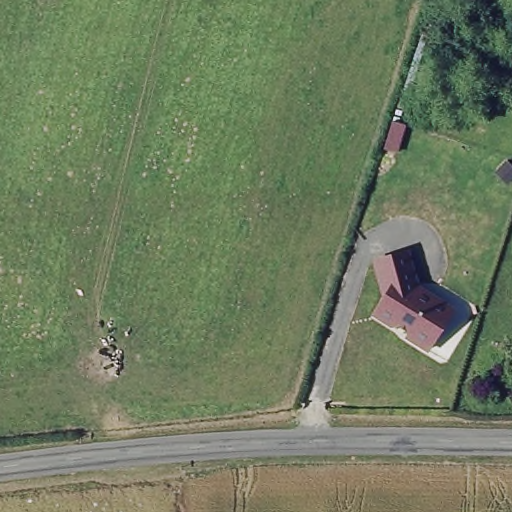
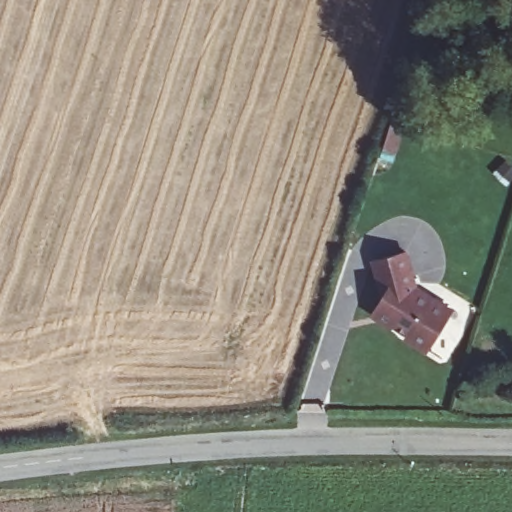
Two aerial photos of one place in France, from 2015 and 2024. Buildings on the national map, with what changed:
unchanged [(407,124),(400,155),(383,149),(392,119),(407,124)]
unchanged [(418,282),(457,310),(432,353),(372,316),(382,300),(372,257),(409,247),(418,282)]

